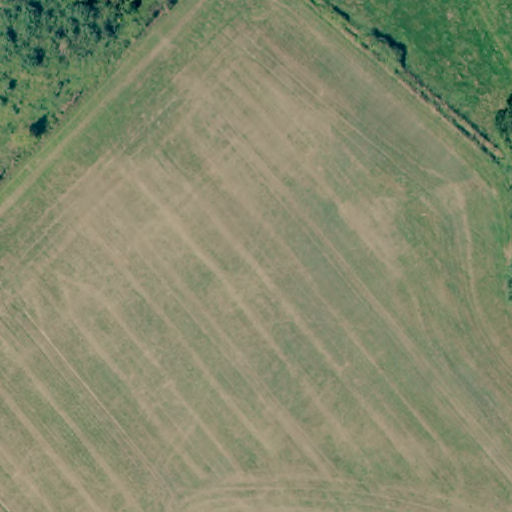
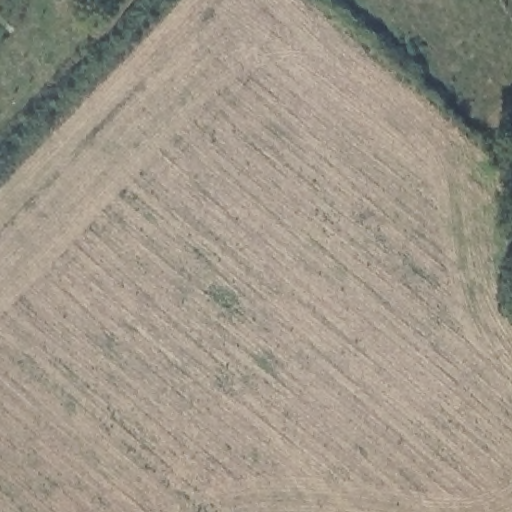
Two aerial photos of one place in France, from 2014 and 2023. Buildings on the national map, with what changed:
[]

